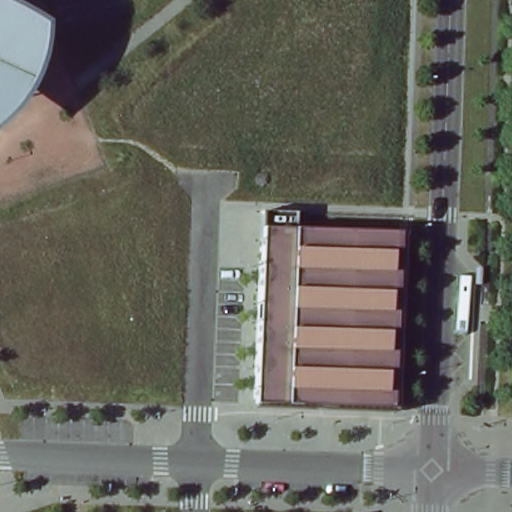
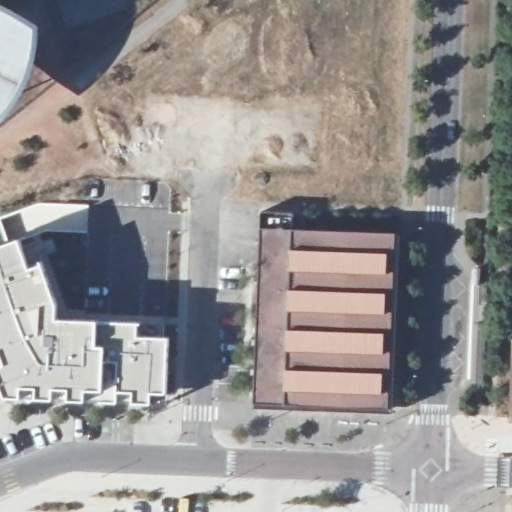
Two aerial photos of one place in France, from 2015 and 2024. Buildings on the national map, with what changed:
unchanged [(36,43),(29,66),(23,85),(15,100),(5,113),(0,117),(0,7),(39,26),(36,43)]
new [(0,228),(0,217),(22,209),(28,228),(31,227),(32,232),(22,236),(32,265),(43,261),(59,302),(61,316),(166,320),(166,333),(172,334),(170,394),(154,394),(153,405),(132,403),(5,400),(0,388),(0,244),(5,242),(0,228)]
unchanged [(305,223),(304,239),(304,252),(312,252),(312,246),(315,246),(318,246),(321,246),(324,247),(326,248),(329,249),(331,251),(334,253),(390,255),(384,413),(333,411),(332,421),(312,420),(304,420),(302,420),(302,410),(253,408),(261,221),(305,223)]

